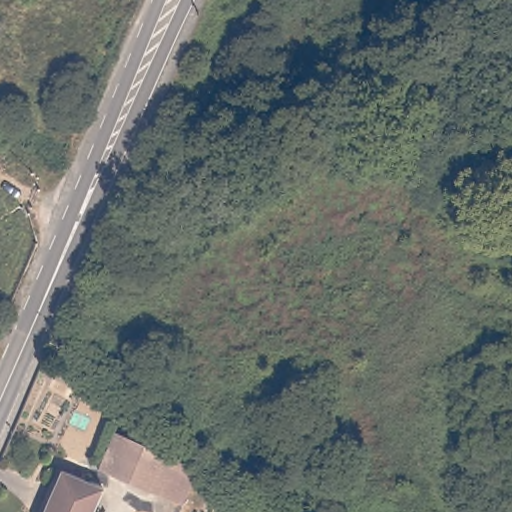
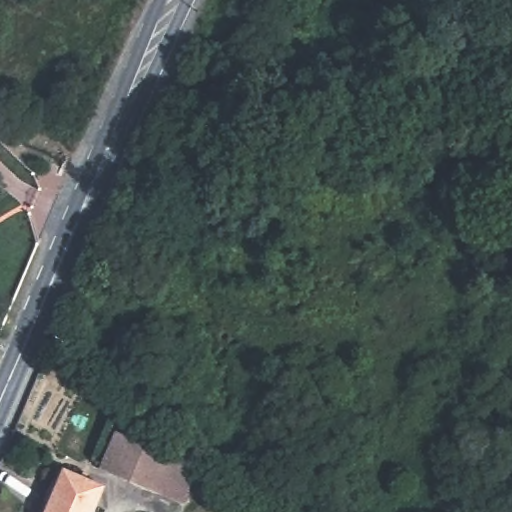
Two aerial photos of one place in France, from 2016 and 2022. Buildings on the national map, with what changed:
unchanged [(114,432),(178,458),(197,472),(183,504),(99,466),(114,432)]
unchanged [(63,462),(104,481),(92,507),(103,512),(41,512),(63,462)]

